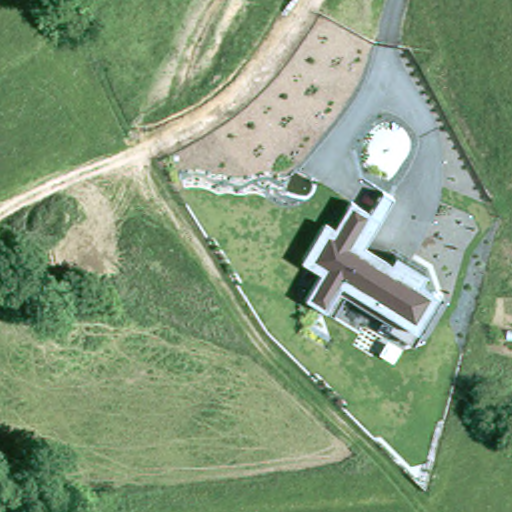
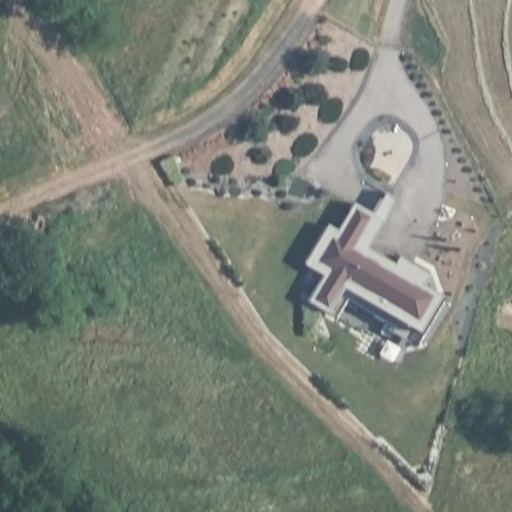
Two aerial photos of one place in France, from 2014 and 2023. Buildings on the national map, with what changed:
unchanged [(327,223),(339,228),(353,200),(371,211),(381,191),(396,199),(369,248),(393,263),(398,255),(431,276),(424,286),(439,296),(417,332),(344,290),(327,316),(305,301),(320,275),(301,265),(327,223)]

